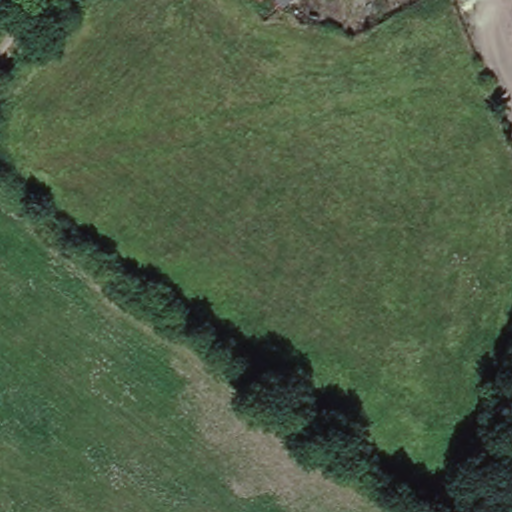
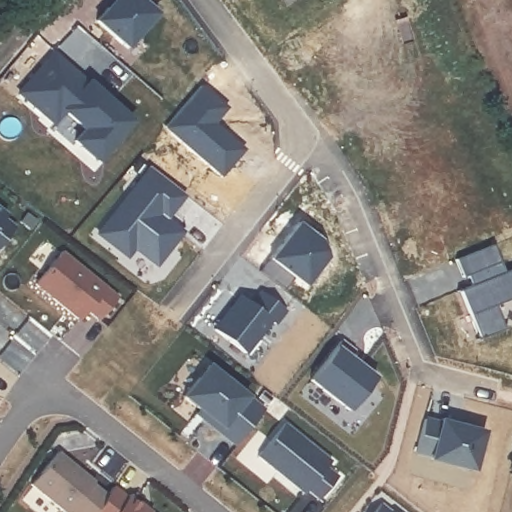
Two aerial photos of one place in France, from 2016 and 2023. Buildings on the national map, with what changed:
new [(110,0),(143,0),(156,11),(125,46),(94,19),(110,0)]
unchanged [(281,7),(276,0),(281,0),(284,4),(281,7)]
unchanged [(284,4),(281,0),(289,0),(284,4)]
new [(43,112),(18,91),(51,54),(87,84),(85,87),(105,105),(109,99),(132,119),(97,159),(74,140),(85,127),(64,110),(54,121),(43,112)]
new [(171,245),(157,264),(128,243),(122,251),(97,233),(149,166),(185,194),(172,211),(167,207),(160,215),(175,225),(182,232),(171,245)]
new [(167,207),(172,211),(166,219),(160,215),(167,207)]
new [(4,218),(17,227),(0,248),(0,208),(7,214),(4,218)]
new [(297,221),(320,239),(327,256),(305,285),(293,277),(283,289),(259,271),(297,221)]
new [(128,243),(134,247),(127,256),(122,251),(128,243)]
new [(494,244),(504,272),(512,269),(512,297),(495,304),(503,327),(480,336),(461,288),(472,284),(468,275),(464,276),(457,259),(494,244)]
new [(119,296),(100,320),(89,311),(82,320),(36,285),(64,251),(119,296)]
new [(250,304),(260,291),(284,310),(273,323),(269,320),(244,353),(213,329),(239,295),(250,304)]
new [(340,340),(354,351),(350,358),(375,378),(348,411),(309,380),(340,340)]
new [(250,397),(264,409),(236,446),(196,414),(199,410),(181,397),(208,363),(250,397)]
new [(427,422),(441,426),(442,422),(459,426),(458,428),(482,435),(472,471),(432,460),(432,458),(417,454),(427,422)]
new [(332,461),(327,467),(338,476),(321,499),(308,490),(305,494),(259,457),(284,424),(332,461)]
new [(110,495),(116,487),(127,496),(130,493),(152,512),(68,512),(31,486),(59,452),(94,482),(110,495)]
new [(393,512),(375,512),(382,504),(393,512)]

